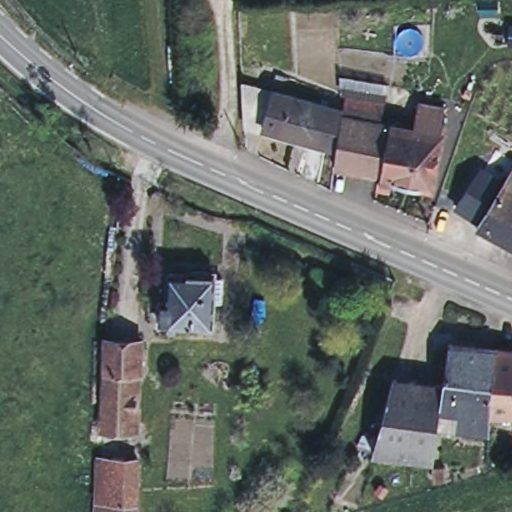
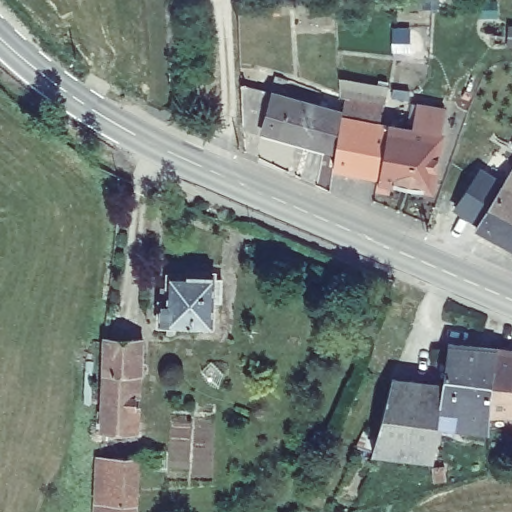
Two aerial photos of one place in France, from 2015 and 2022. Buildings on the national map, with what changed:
unchanged [(497,0),(496,13),(480,13),(480,0),(497,0)]
unchanged [(341,115),(337,149),(263,129),(245,123),(242,84),(273,93),(340,112),(341,115)]
unchanged [(347,97),(380,103),(376,122),(390,125),(379,176),(334,167),(337,149),(341,115),(342,116),(347,97)]
unchanged [(417,103),(445,108),(440,134),(442,135),(432,188),(390,181),(388,189),(377,187),(379,176),(390,125),(413,129),(417,103)]
unchanged [(505,182),(512,171),(512,187),(505,182)]
unchanged [(512,187),(512,226),(503,241),(476,226),(505,182),(512,187)]
unchanged [(503,241),(512,226),(512,246),(503,241)]
unchanged [(167,302),(167,275),(187,276),(192,273),(205,273),(209,277),(213,277),(212,327),(175,326),(175,334),(166,334),(167,325),(158,325),(159,302),(167,302)]
unchanged [(447,339),(497,345),(490,408),(488,425),(453,422),(455,406),(439,406),(442,380),(447,339)]
unchanged [(105,340),(140,342),(140,374),(133,373),(103,372),(105,340)]
unchanged [(490,408),(497,345),(512,347),(512,410),(490,408)]
unchanged [(103,372),(133,373),(132,432),(102,430),(102,417),(97,417),(97,411),(102,411),(103,372)]
unchanged [(391,374),(442,380),(439,406),(433,453),(372,445),(357,443),(364,428),(376,430),(391,374)]
unchanged [(97,458),(135,459),(135,504),(95,503),(97,458)]
unchanged [(445,468),(446,478),(433,480),(432,470),(445,468)]
unchanged [(135,504),(134,512),(95,512),(95,503),(135,504)]

